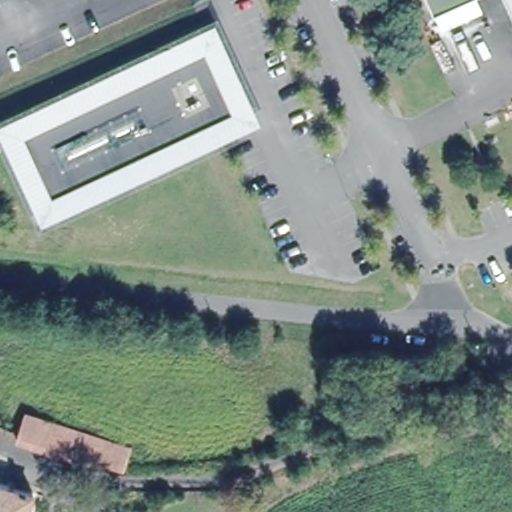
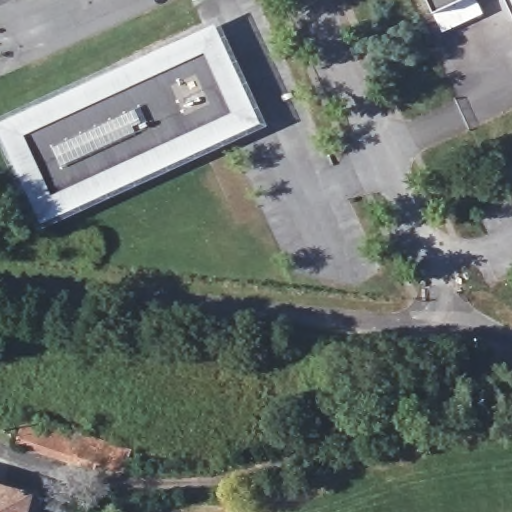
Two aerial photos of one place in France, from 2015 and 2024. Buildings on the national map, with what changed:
unchanged [(459,0),(438,9),(434,0),(459,0)]
unchanged [(511,0),(512,0),(512,2),(511,0)]
unchanged [(190,49),(210,40),(246,118),(227,127),(190,49)]
unchanged [(48,209),(12,131),(190,49),(227,127),(48,209)]
unchanged [(25,411),(131,446),(124,465),(97,456),(94,465),(75,458),(77,454),(17,434),(25,411)]
unchanged [(27,512),(0,512),(0,481),(33,490),(27,512)]

